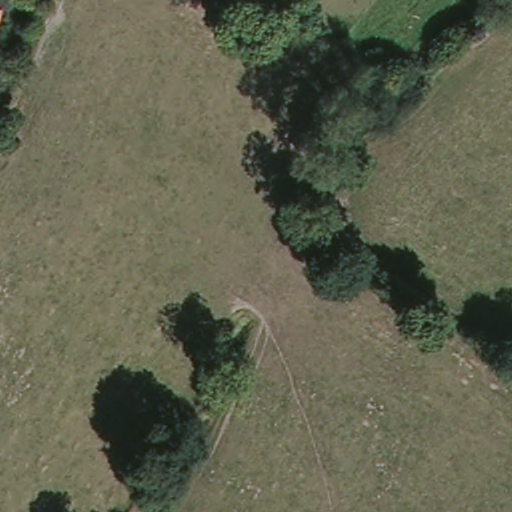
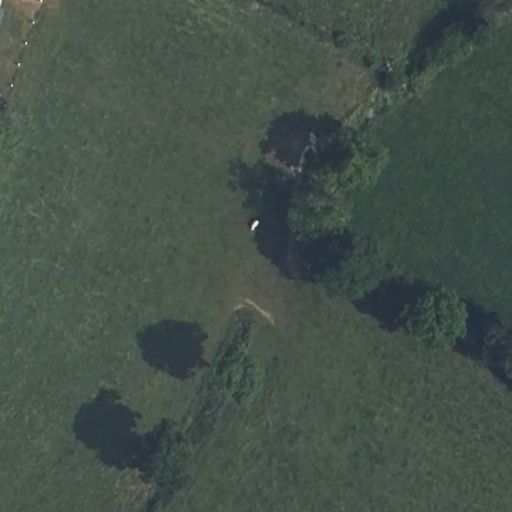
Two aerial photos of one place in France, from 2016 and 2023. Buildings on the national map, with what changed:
unchanged [(35,20),(25,16),(31,0),(43,0),(35,20)]
unchanged [(1,8),(0,10),(0,8),(1,8)]

